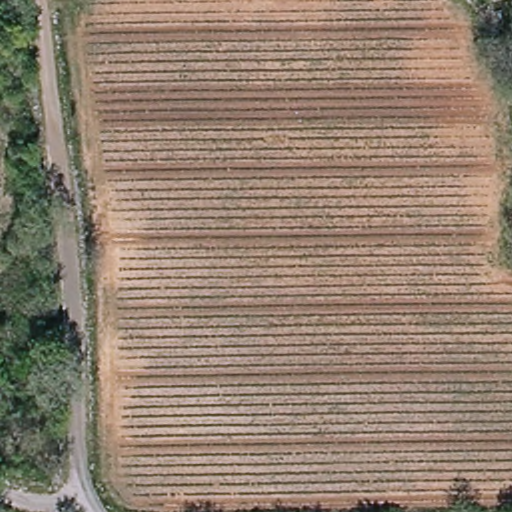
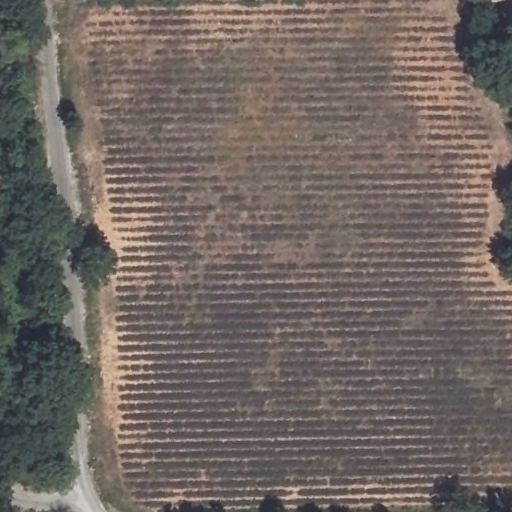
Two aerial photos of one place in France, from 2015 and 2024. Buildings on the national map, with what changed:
unchanged [(477,0),(504,0),(479,6),(477,0)]

